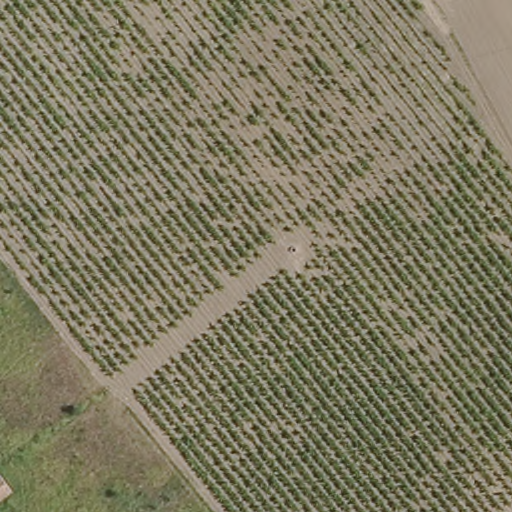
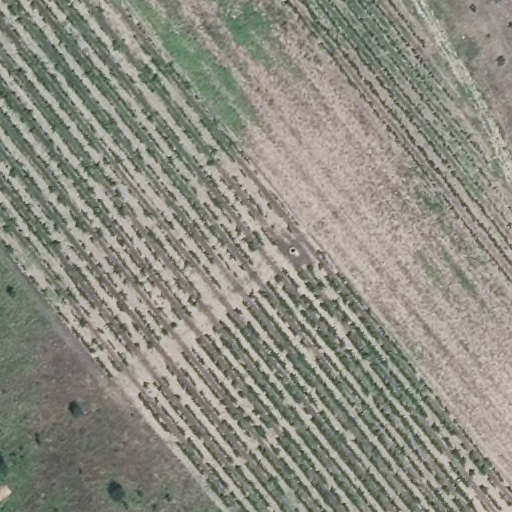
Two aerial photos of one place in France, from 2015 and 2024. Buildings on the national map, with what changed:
unchanged [(7,493),(0,499),(0,485),(7,493)]

